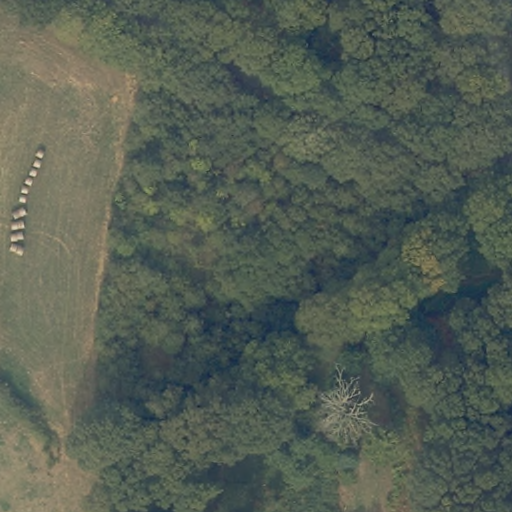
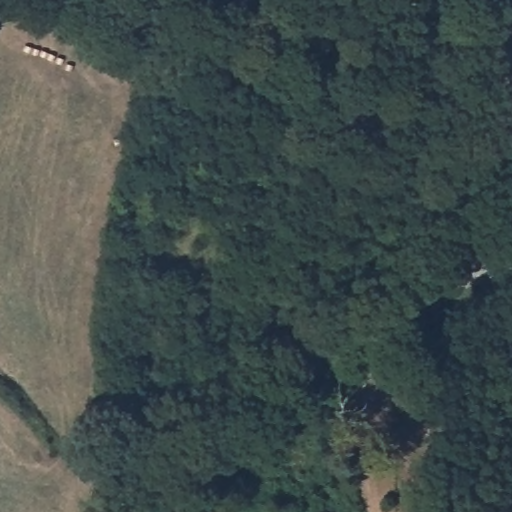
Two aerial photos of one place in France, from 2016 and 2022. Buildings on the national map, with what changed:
unchanged [(305,14),(306,0),(321,0),(318,15),(305,14)]

